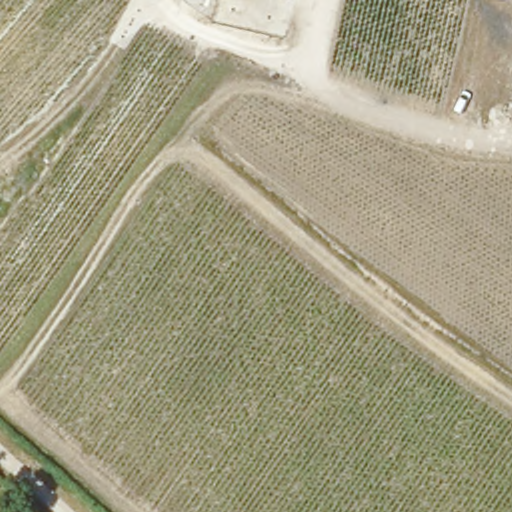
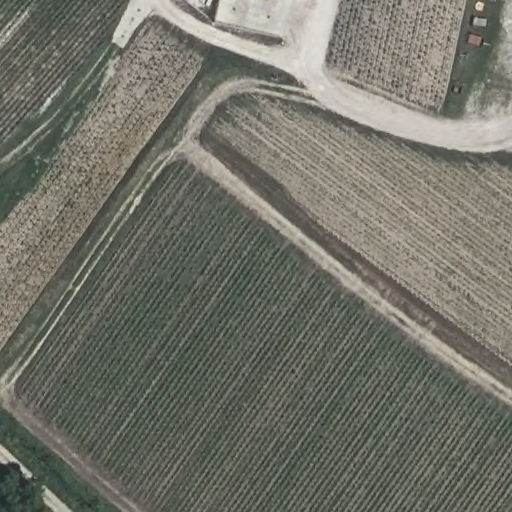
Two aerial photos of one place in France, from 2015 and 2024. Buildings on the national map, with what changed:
unchanged [(273,1),(266,0),(273,0),(273,1)]

